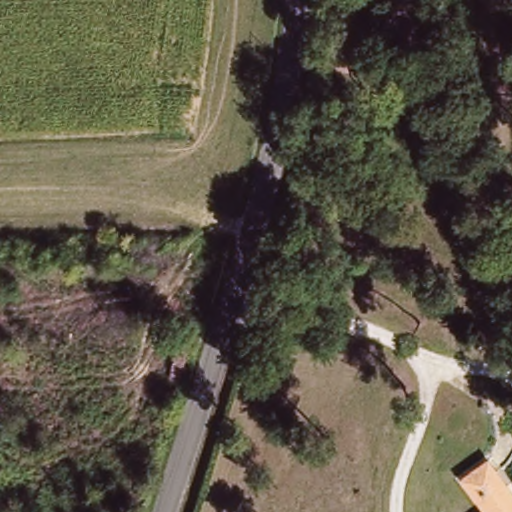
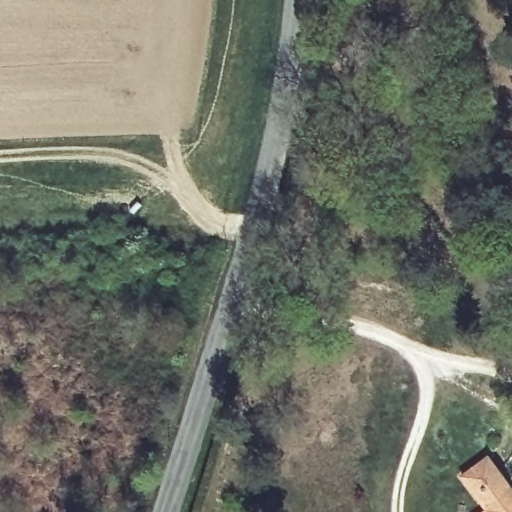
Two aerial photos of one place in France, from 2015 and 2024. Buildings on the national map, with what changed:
unchanged [(470,481),(498,460),(512,478),(512,512),(487,512),(491,509),(470,481)]

